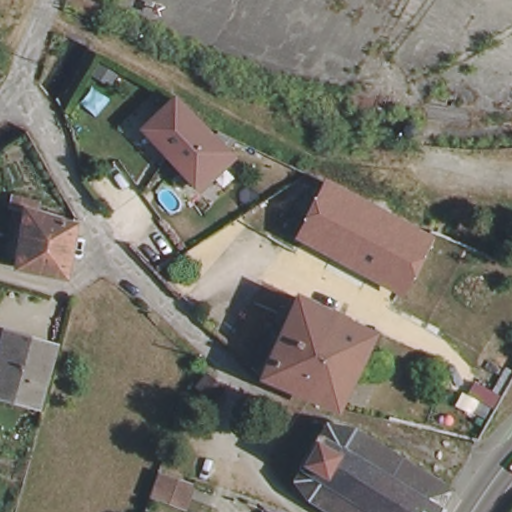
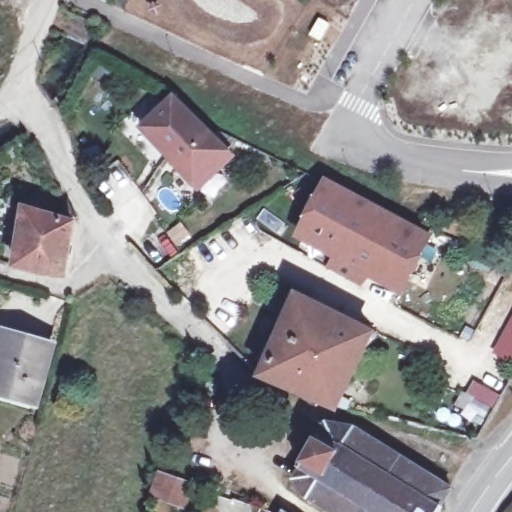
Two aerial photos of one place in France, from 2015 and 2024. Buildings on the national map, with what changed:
unchanged [(216,132),(238,144),(194,186),(166,158),(139,131),(171,100),(211,136),(216,132)]
unchanged [(342,194),(352,199),(396,223),(394,227),(423,240),(421,246),(399,291),(398,293),(297,239),(324,185),(342,194)]
unchanged [(64,278),(14,270),(24,214),(11,211),(14,198),(40,204),(39,208),(66,214),(64,224),(72,226),(64,278)]
unchanged [(336,406),(263,375),(261,373),(294,295),(368,332),(336,406)]
new [(512,317),(512,363),(492,353),(512,317)]
unchanged [(55,348),(43,405),(0,394),(0,368),(8,336),(55,348)]
unchanged [(198,384),(206,373),(221,385),(213,395),(198,384)]
unchanged [(348,431),(364,439),(446,491),(434,512),(318,512),(304,503),(288,483),(296,471),(292,469),(311,436),(314,437),(321,425),(348,431)]
unchanged [(189,512),(183,512),(155,502),(163,480),(195,492),(189,512)]

